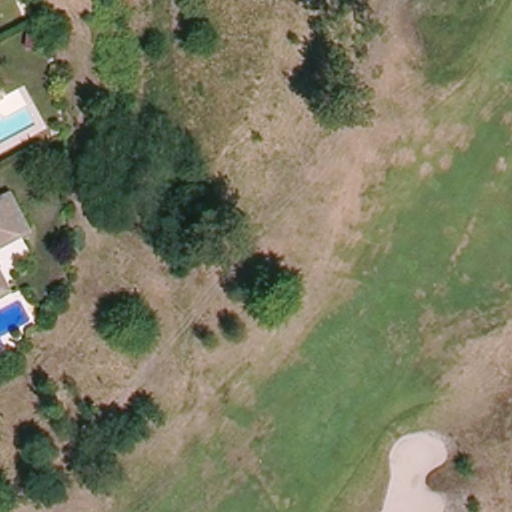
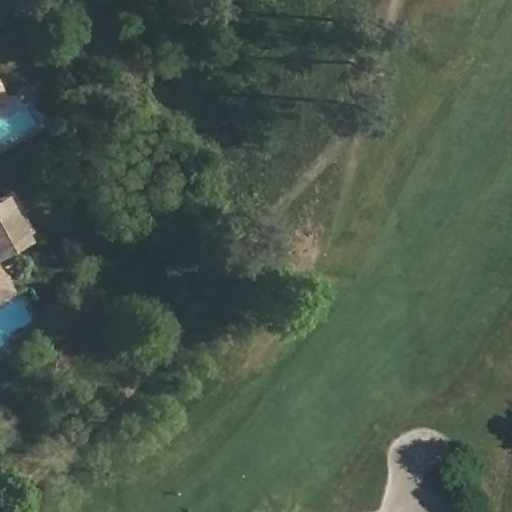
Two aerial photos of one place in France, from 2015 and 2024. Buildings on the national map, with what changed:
unchanged [(0,100),(0,93),(3,99),(0,100)]
unchanged [(0,195),(5,192),(26,235),(0,248),(0,195)]
unchanged [(0,298),(0,263),(13,292),(0,298)]

